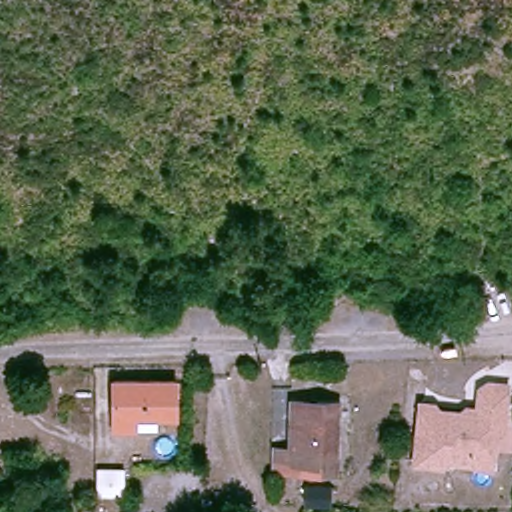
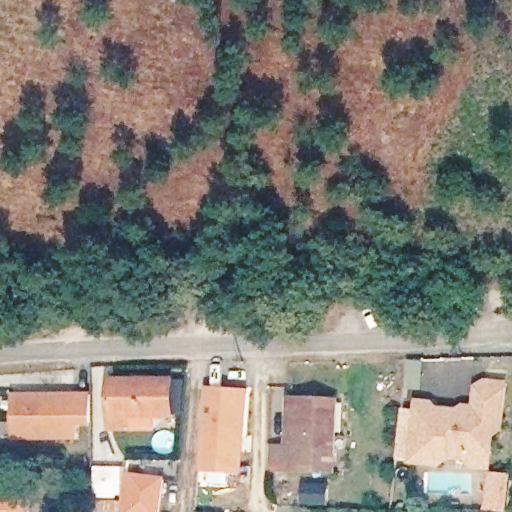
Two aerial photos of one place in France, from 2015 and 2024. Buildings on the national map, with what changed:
unchanged [(109,417),(110,381),(168,382),(169,416),(148,416),(126,416),(109,417)]
unchanged [(475,467),(468,459),(449,457),(449,460),(443,466),(414,463),(421,403),(435,405),(439,410),(477,414),(479,389),(487,383),(507,385),(502,431),(495,437),(493,455),(491,468),(475,467)]
new [(210,388),(250,391),(243,471),(203,467),(210,388)]
new [(94,392),(94,426),(81,426),(81,440),(14,441),(14,392),(94,392)]
unchanged [(295,467),(283,467),(283,458),(284,445),(295,445),(297,399),(338,400),(335,460),(335,468),(295,467)]
demolished [(7,432),(5,452),(0,452),(0,432),(7,432)]
new [(168,477),(164,512),(123,512),(128,472),(168,477)]
new [(31,495),(29,512),(0,512),(0,494),(31,495)]

